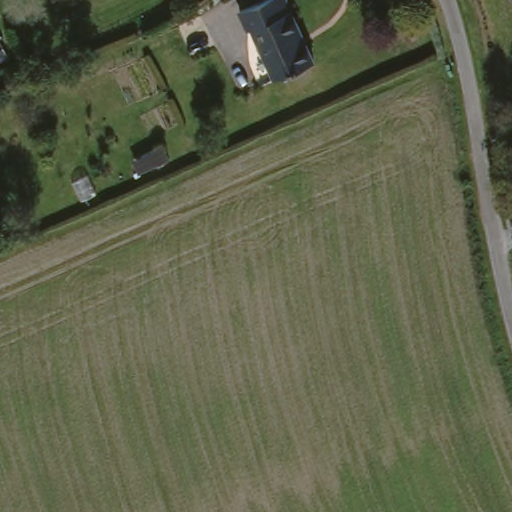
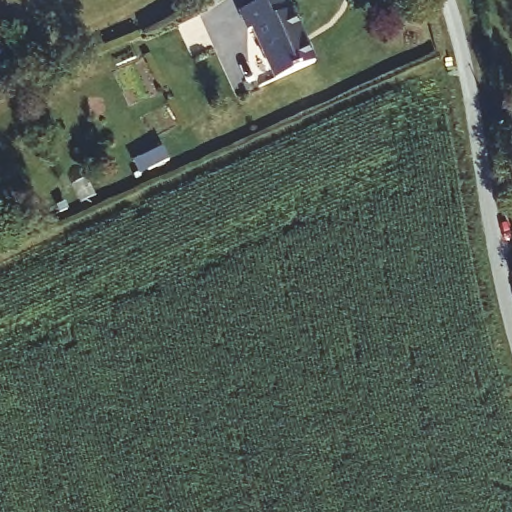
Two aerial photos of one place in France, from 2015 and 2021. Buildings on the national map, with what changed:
unchanged [(271,82),(251,28),(247,29),(241,10),(271,0),(287,0),(312,68),(271,82)]
unchanged [(125,158),(135,155),(155,147),(160,160),(140,168),(131,172),(125,158)]

